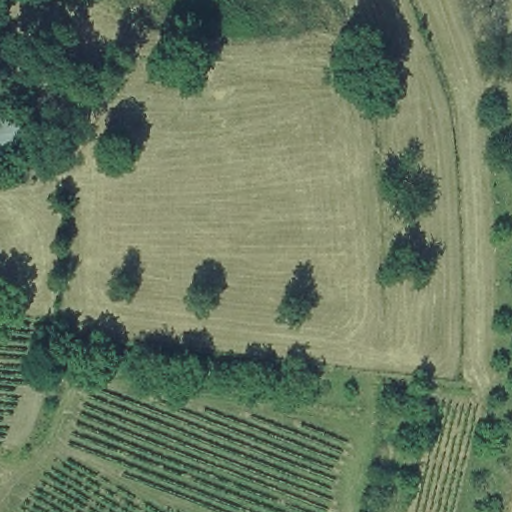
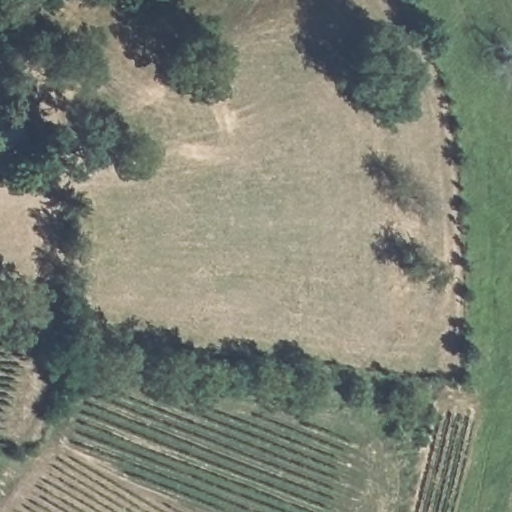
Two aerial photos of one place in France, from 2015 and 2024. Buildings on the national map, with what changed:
unchanged [(30,147),(2,154),(0,142),(0,114),(25,108),(30,147)]

